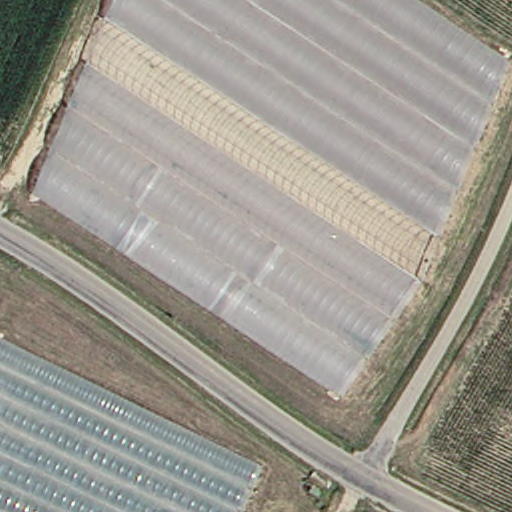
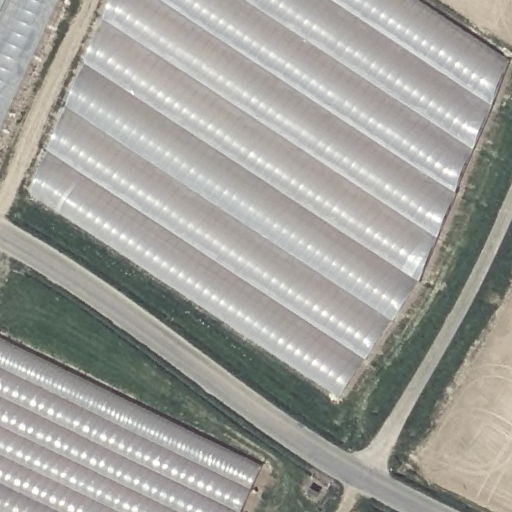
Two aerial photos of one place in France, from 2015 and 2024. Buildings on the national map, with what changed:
new [(0,0),(63,0),(0,140),(0,0)]
unchanged [(508,60),(424,278),(343,392),(35,187),(113,0),(417,0),(508,60)]
unchanged [(233,512),(0,512),(0,342),(254,466),(233,512)]

